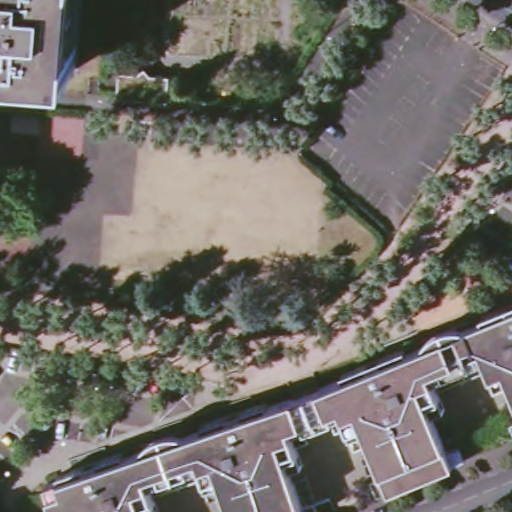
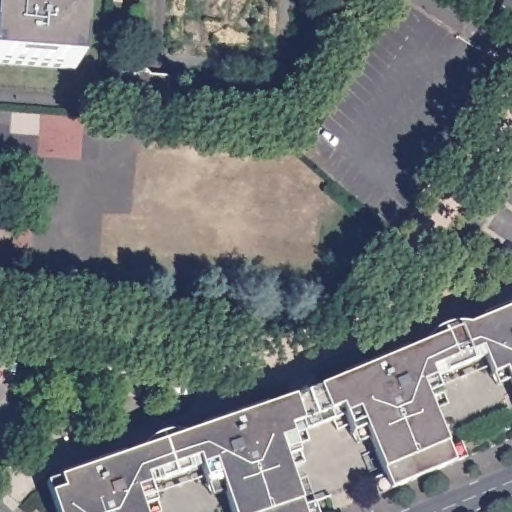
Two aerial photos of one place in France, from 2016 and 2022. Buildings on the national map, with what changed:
unchanged [(76,67),(0,62),(0,0),(81,0),(76,67)]
unchanged [(271,411),(345,383),(343,378),(512,308),(512,385),(508,375),(494,380),(484,354),(473,358),(476,366),(448,377),(445,369),(434,374),(444,401),(433,406),(451,452),(464,447),(470,462),(437,475),(434,471),(413,480),(414,485),(381,499),(375,483),(387,478),(368,432),(357,438),(346,410),(331,416),(334,425),(309,434),(306,426),(293,432),(303,457),(290,462),(307,509),(319,505),(321,512),(234,512),(224,484),(211,488),(202,462),(189,466),(193,475),(164,484),(161,476),(149,480),(158,506),(146,511),(147,512),(59,512),(50,486),(63,482),(61,478),(269,406),(271,411)]

